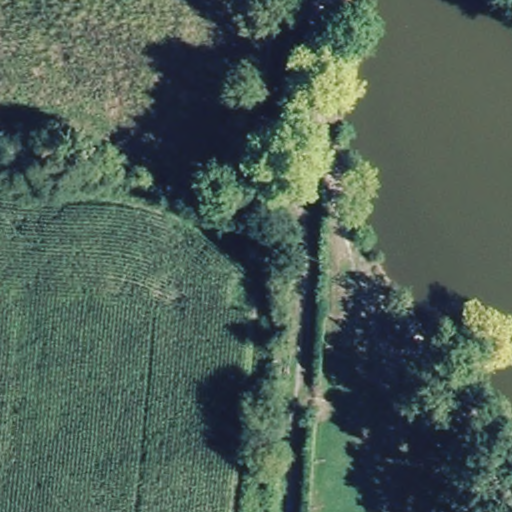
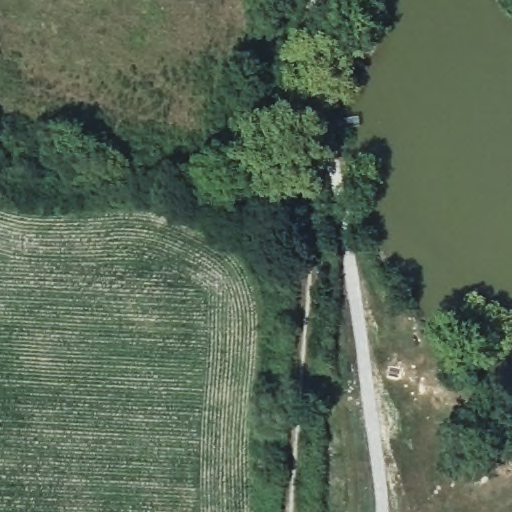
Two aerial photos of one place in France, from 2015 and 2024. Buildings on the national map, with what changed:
unchanged [(434,456),(466,475),(452,494),(420,474),(434,456)]

